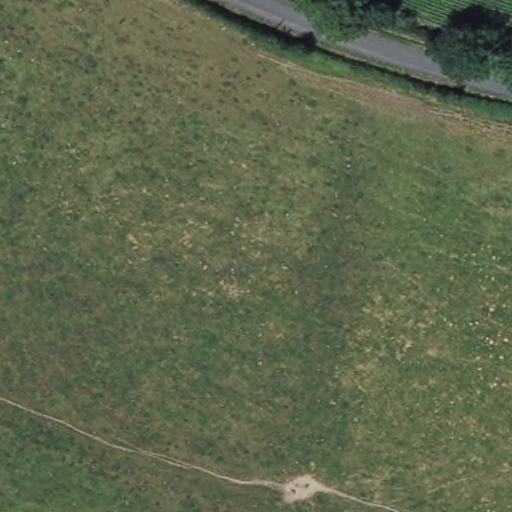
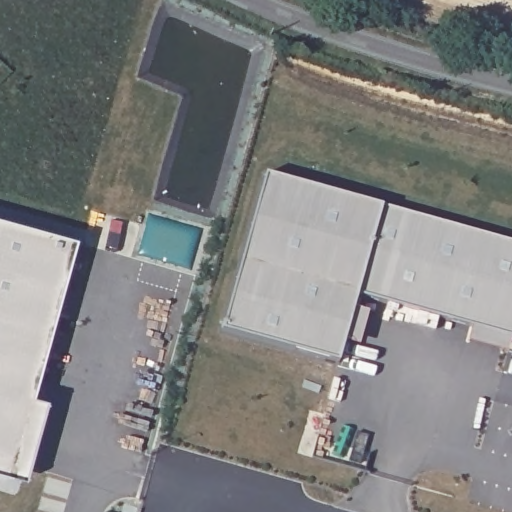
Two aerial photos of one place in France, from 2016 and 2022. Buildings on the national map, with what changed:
new [(381,206),(512,242),(512,335),(358,292),(339,362),(222,330),(266,175),(381,206)]
new [(28,397),(42,401),(21,480),(0,474),(0,219),(72,239),(28,397)]

